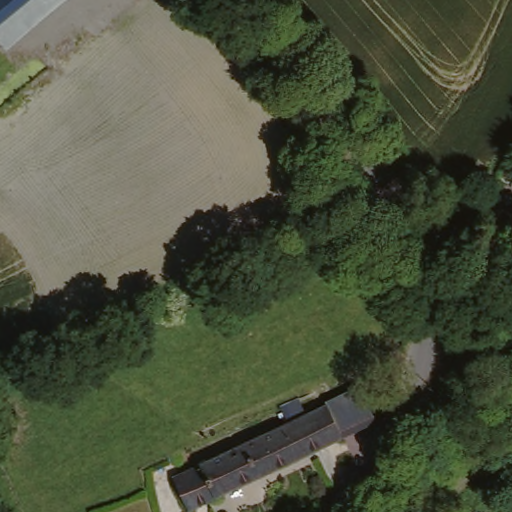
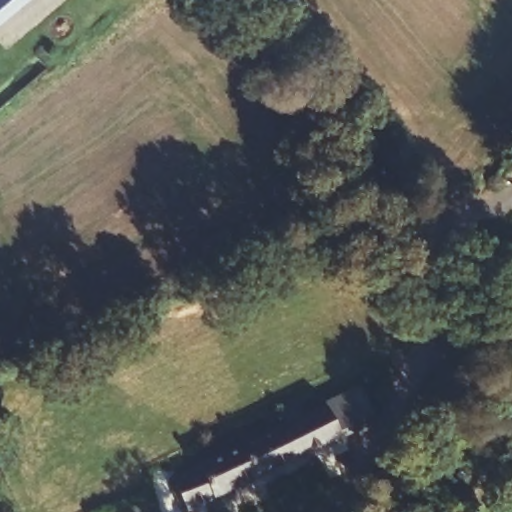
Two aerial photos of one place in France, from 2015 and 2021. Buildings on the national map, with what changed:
unchanged [(0,14),(0,0),(17,0),(0,14)]
unchanged [(359,382),(379,422),(192,510),(178,477),(290,423),(287,409),(297,404),(311,397),(356,377),(359,382)]

